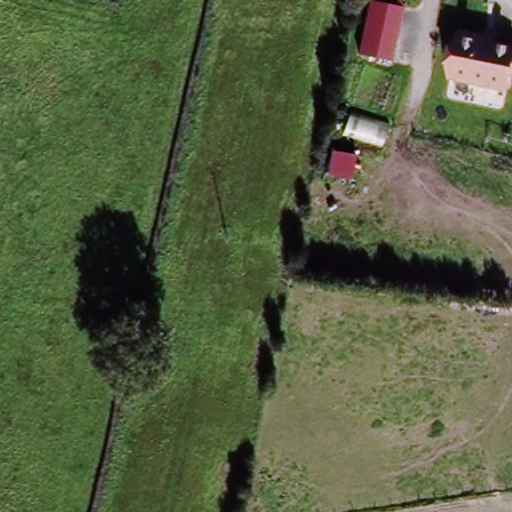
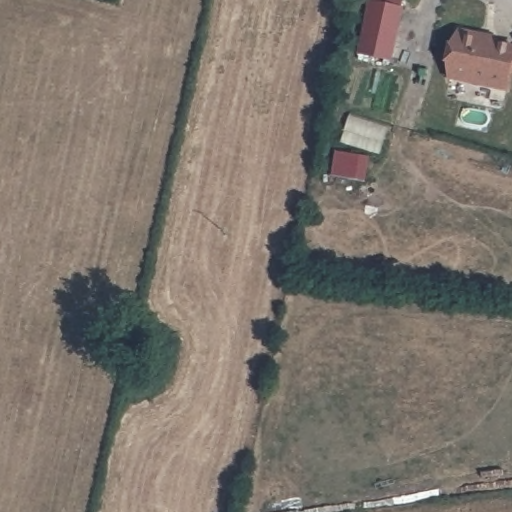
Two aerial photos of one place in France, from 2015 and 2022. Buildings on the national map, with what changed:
unchanged [(388,60),(355,50),(367,0),(401,10),(388,60)]
unchanged [(508,56),(512,54),(512,74),(504,79),(500,95),(442,83),(452,35),(475,40),(488,43),(487,49),(507,52),(508,56)]

